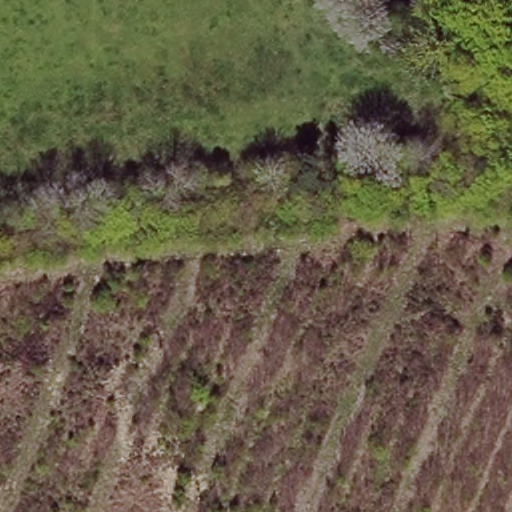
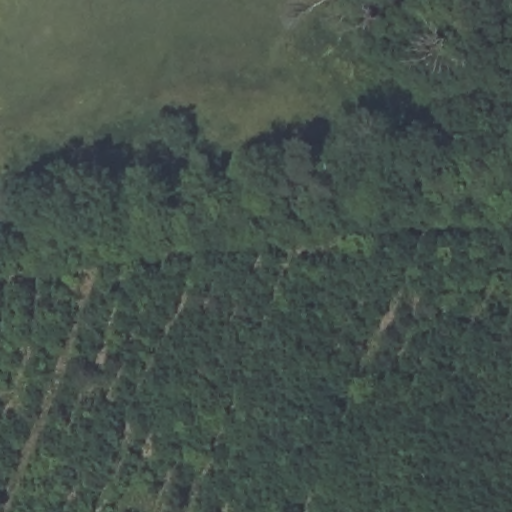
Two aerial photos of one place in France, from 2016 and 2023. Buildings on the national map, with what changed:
[]

